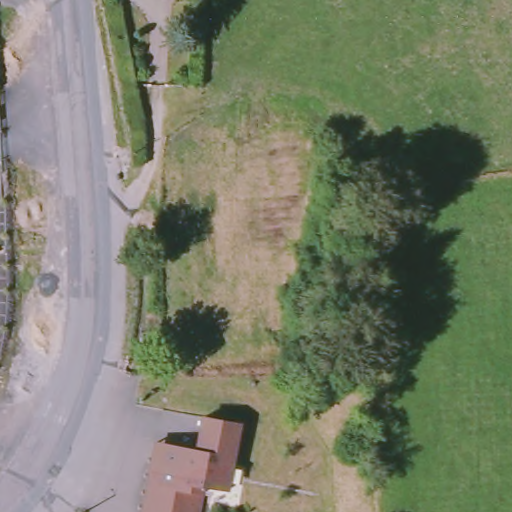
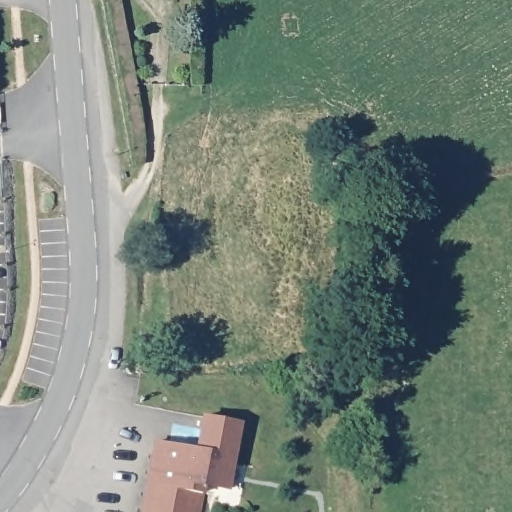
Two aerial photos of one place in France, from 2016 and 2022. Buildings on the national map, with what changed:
unchanged [(206,483),(201,512),(147,512),(159,441),(200,447),(206,414),(241,420),(230,487),(206,483)]

